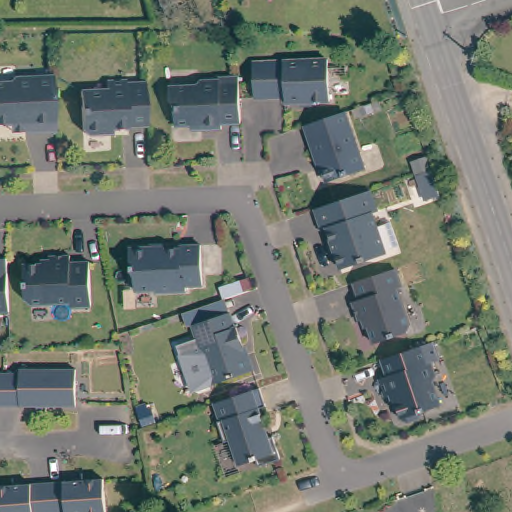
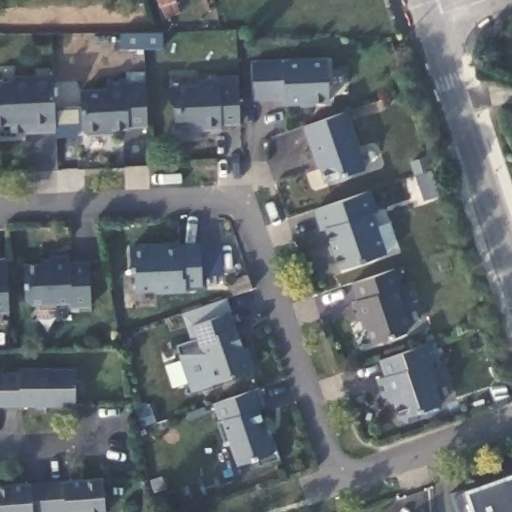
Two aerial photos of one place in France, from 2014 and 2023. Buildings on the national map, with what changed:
unchanged [(168,13),(163,0),(181,0),(183,7),(168,13)]
unchanged [(328,60),(330,102),(286,104),(286,98),(255,100),(254,64),(328,60)]
unchanged [(0,121),(0,78),(10,78),(14,74),(54,71),(56,127),(26,129),(26,127),(12,127),(12,120),(0,121)]
unchanged [(223,130),(203,131),(203,126),(176,127),(175,106),(171,103),(170,88),(197,87),(201,82),(219,81),(219,79),(238,78),(241,125),(223,125),(223,130)]
unchanged [(143,127),(125,129),(125,130),(99,131),(95,135),(84,136),(79,132),(77,92),(104,90),(103,82),(122,81),(123,85),(141,84),(143,127)]
unchanged [(322,182),(314,158),(311,159),(300,125),(340,112),(360,170),(322,182)]
unchanged [(437,193),(422,198),(414,174),(429,169),(437,193)]
unchanged [(337,270),(323,230),(318,231),(311,209),(366,190),(373,211),(368,214),(382,254),(337,270)]
unchanged [(153,290),(133,292),(132,278),(128,272),(126,249),(148,248),(148,250),(177,249),(177,247),(180,247),(197,246),(199,285),(183,287),(184,291),(153,293),(153,290)]
unchanged [(10,307),(0,308),(0,255),(7,255),(10,307)]
unchanged [(45,265),(45,258),(65,257),(65,264),(85,263),(87,307),(67,308),(66,304),(25,306),(21,302),(19,266),(45,265)]
unchanged [(396,267),(403,286),(399,288),(412,326),(408,332),(375,343),(366,320),(360,321),(353,302),(360,300),(353,282),(396,267)]
unchanged [(238,333),(247,359),(250,361),(256,375),(214,390),(194,330),(191,331),(189,332),(184,319),(191,316),(227,303),(232,318),(237,333),(238,333)]
unchanged [(418,411),(415,417),(404,421),(399,418),(397,418),(389,395),(381,397),(375,379),(382,376),(377,360),(425,343),(429,342),(435,360),(427,362),(432,377),(429,382),(437,405),(427,408),(418,411)]
unchanged [(0,406),(0,374),(19,373),(19,370),(74,368),(74,400),(74,405),(0,406)]
unchanged [(257,409),(266,437),(270,436),(278,459),(256,466),(253,459),(235,465),(227,440),(221,442),(214,421),(217,421),(211,405),(257,388),(263,406),(257,409)]
new [(458,512),(452,494),(466,491),(512,474),(512,512),(458,512)]
unchanged [(103,483),(105,512),(0,512),(0,487),(102,478),(103,483)]

